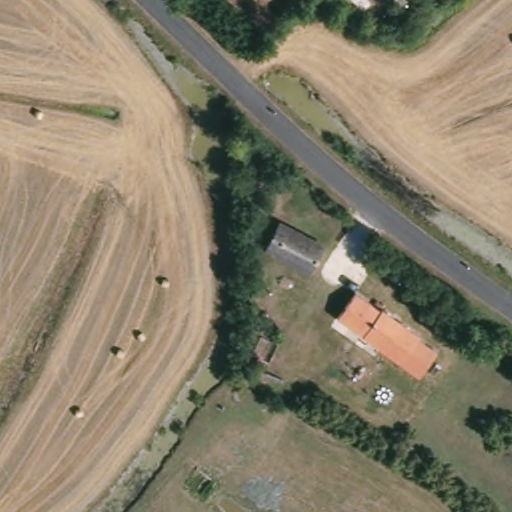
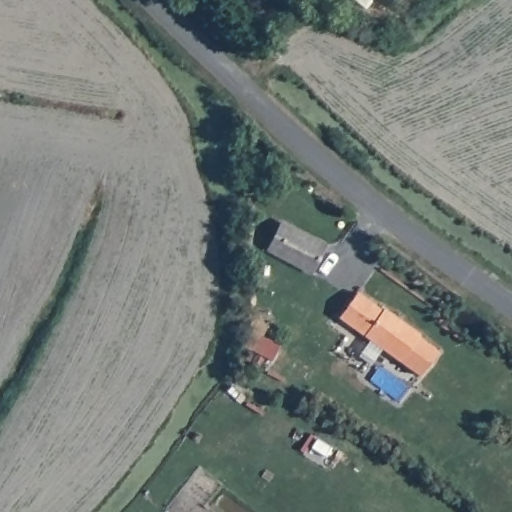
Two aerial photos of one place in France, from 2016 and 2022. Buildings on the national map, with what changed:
unchanged [(322,251),(309,278),(264,254),(278,227),(322,251)]
unchanged [(352,301),(379,316),(381,314),(420,335),(418,337),(443,351),(428,378),(337,328),(352,301)]

